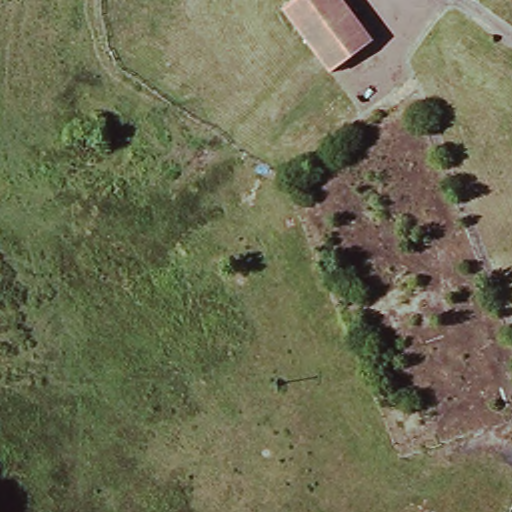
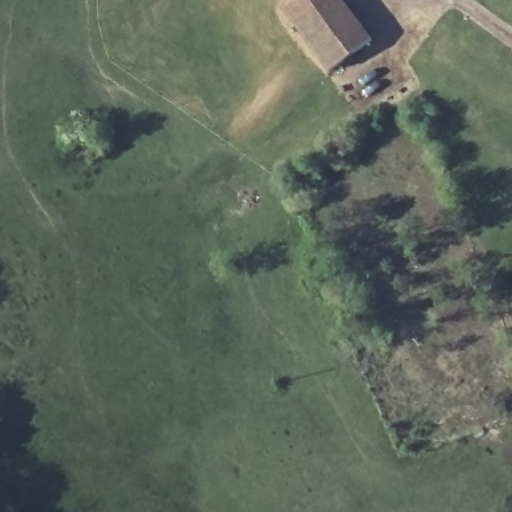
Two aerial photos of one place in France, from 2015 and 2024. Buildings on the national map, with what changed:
unchanged [(323,69),(275,4),(281,0),(338,0),(365,38),(323,69)]

